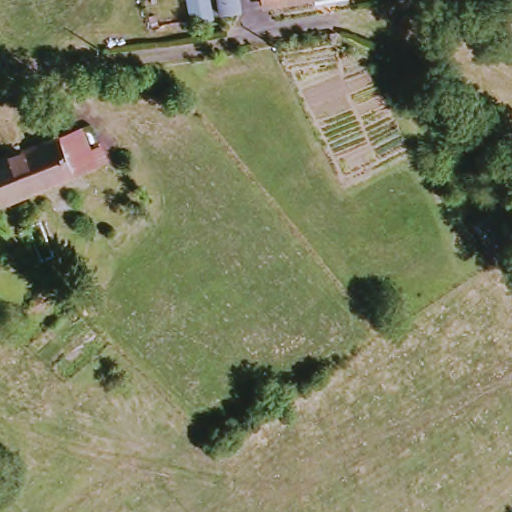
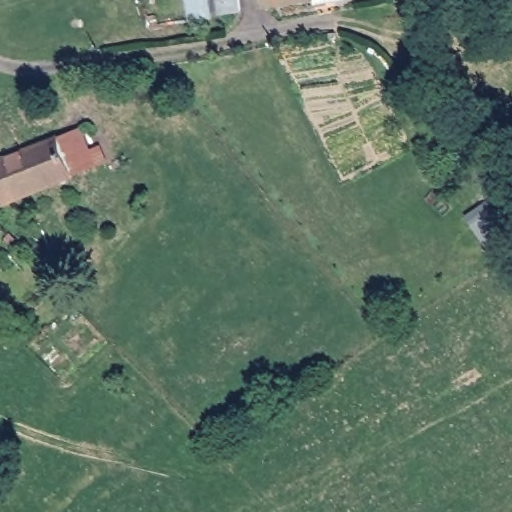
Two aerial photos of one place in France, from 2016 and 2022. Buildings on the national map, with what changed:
unchanged [(192,17),(190,0),(214,0),(216,13),(192,17)]
unchanged [(242,14),(225,15),(223,0),(240,0),(242,14)]
unchanged [(264,9),(263,0),(330,0),(264,9)]
unchanged [(0,184),(0,165),(85,130),(95,153),(110,148),(115,162),(9,204),(3,190),(0,184)]
unchanged [(489,253),(512,237),(512,257),(498,267),(489,253)]

